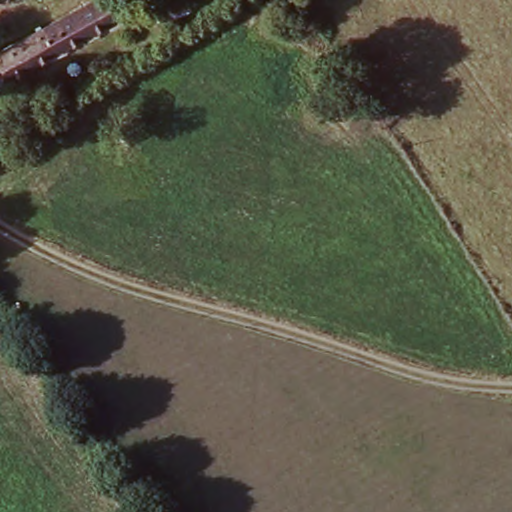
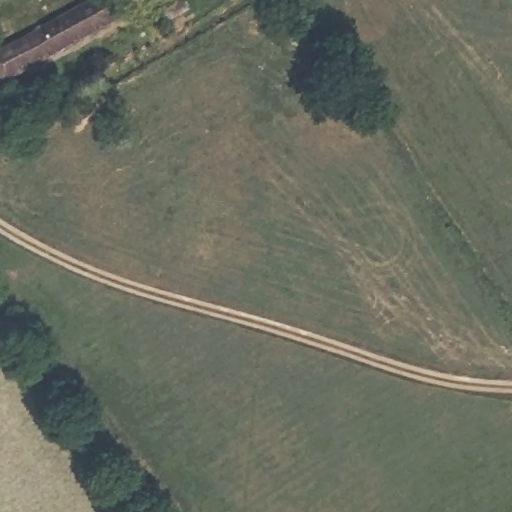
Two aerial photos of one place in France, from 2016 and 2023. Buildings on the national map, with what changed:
unchanged [(0,89),(0,54),(101,0),(107,0),(120,21),(0,89)]
unchanged [(189,14),(162,26),(157,16),(183,4),(189,14)]

